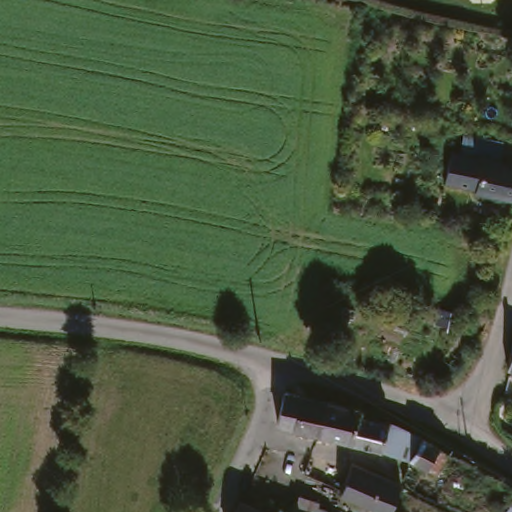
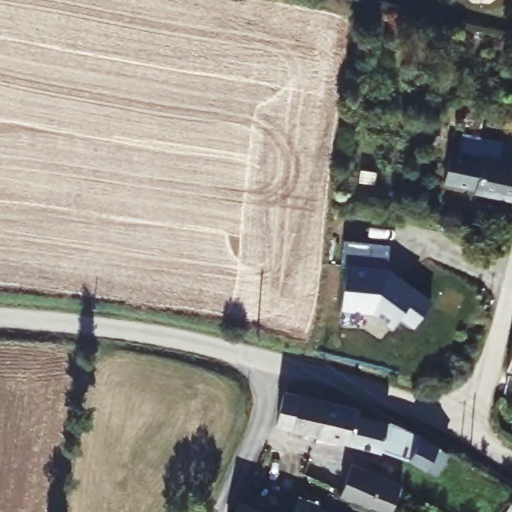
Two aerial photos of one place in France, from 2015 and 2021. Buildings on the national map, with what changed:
unchanged [(473,197),(441,190),(448,159),(457,160),(460,143),(503,152),(500,169),(512,172),(512,208),(472,199),(473,197)]
new [(386,247),(384,272),(399,282),(428,302),(412,327),(397,317),(390,327),(370,314),(340,312),(343,271),(338,270),(340,244),(386,247)]
unchanged [(507,374),(512,352),(512,375),(507,374)]
unchanged [(290,425),(277,416),(285,391),(298,394),(325,401),(355,408),(354,414),(347,440),(316,432),(290,425)]
unchanged [(436,474),(387,451),(347,440),(354,414),(406,434),(447,454),(436,474)]
unchanged [(345,502),(335,498),(336,493),(345,469),(395,489),(392,495),(385,512),(372,512),(366,509),(365,512),(341,512),(345,502)]
unchanged [(303,495),(323,503),(321,508),(333,512),(296,512),(303,495)]
unchanged [(240,501),(271,512),(236,512),(240,501)]
unchanged [(512,510),(512,512),(511,512),(512,510)]

